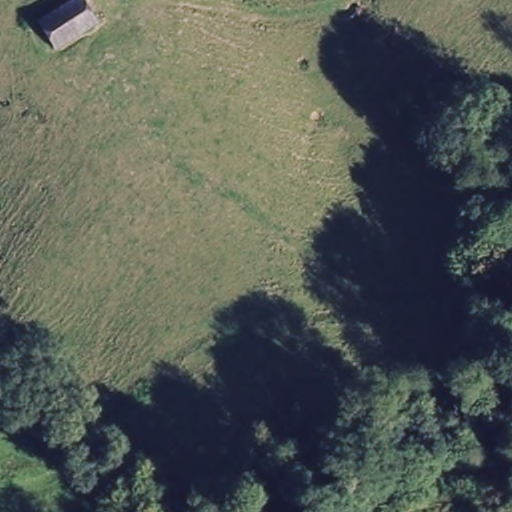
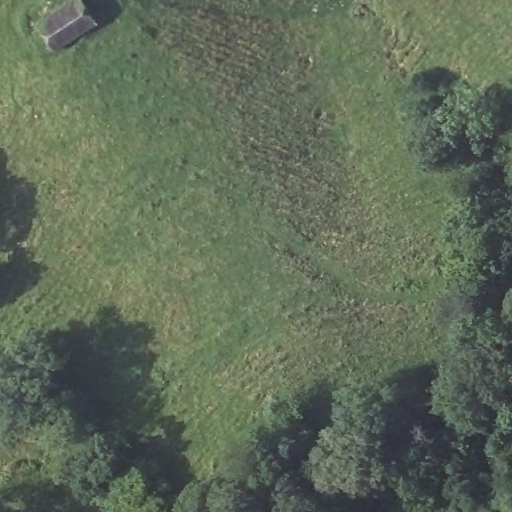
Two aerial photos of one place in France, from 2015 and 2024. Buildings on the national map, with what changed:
unchanged [(80,0),(94,22),(52,49),(34,20),(68,0),(80,0)]

